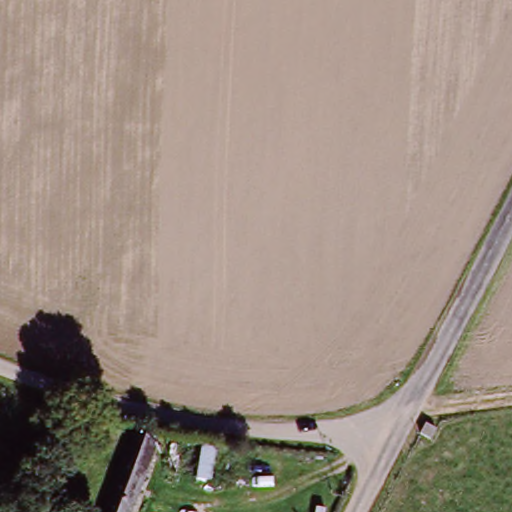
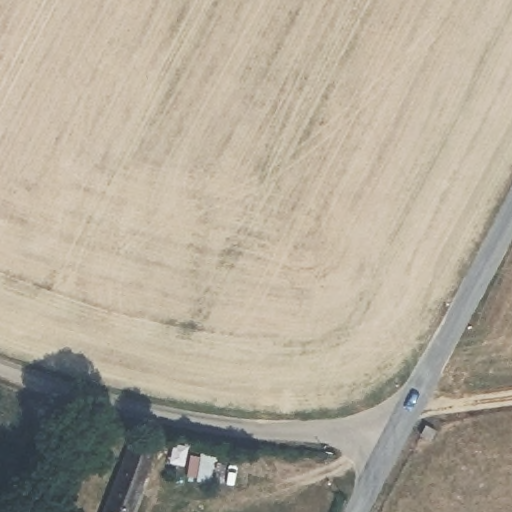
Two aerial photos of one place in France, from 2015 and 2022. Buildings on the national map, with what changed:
unchanged [(132,437),(155,445),(130,512),(103,512),(132,437)]

